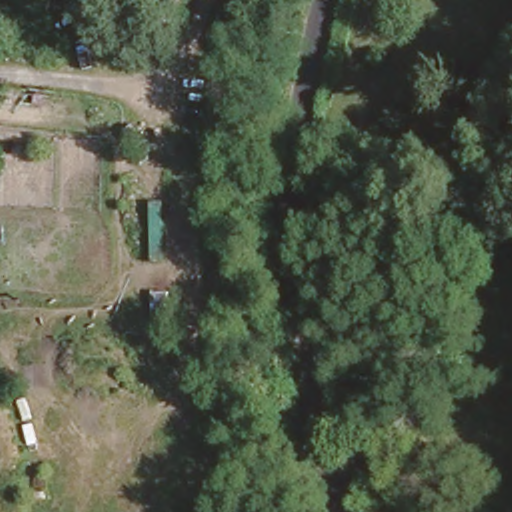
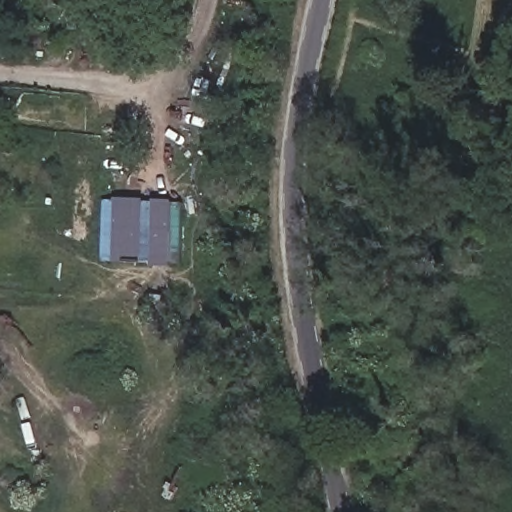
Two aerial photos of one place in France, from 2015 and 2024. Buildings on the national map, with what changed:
new [(172,263),(103,260),(106,196),(175,200),(172,263)]

